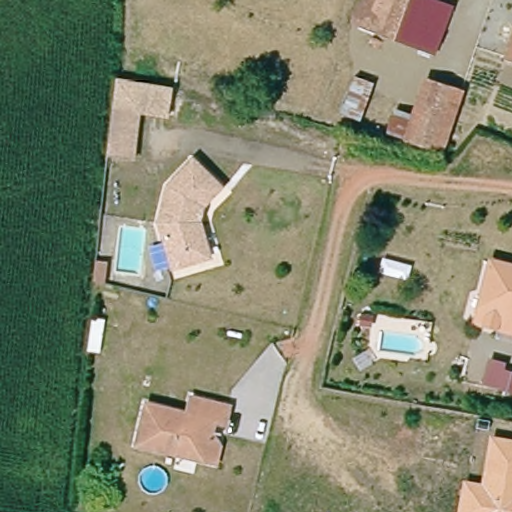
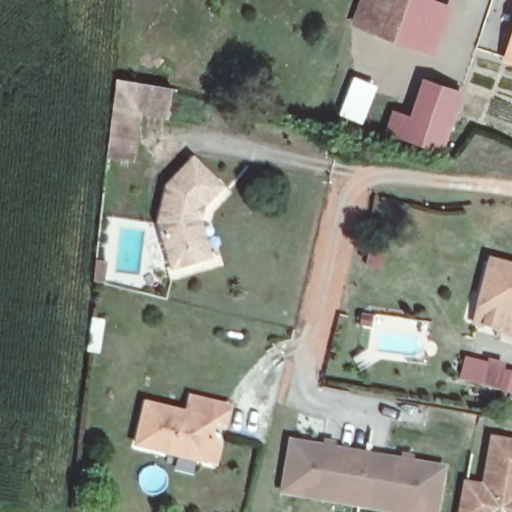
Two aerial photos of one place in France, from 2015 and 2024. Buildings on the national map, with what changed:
unchanged [(427,52),(363,25),(375,0),(418,0),(445,10),(427,52)]
unchanged [(512,50),(512,60),(509,59),(512,50)]
unchanged [(166,116),(135,111),(130,160),(103,157),(114,77),(169,90),(166,116)]
unchanged [(353,122),(335,112),(351,77),(368,86),(353,122)]
unchanged [(424,118),(433,97),(459,109),(437,160),(421,156),(392,143),(407,109),(424,118)]
unchanged [(220,185),(203,205),(200,217),(210,256),(170,269),(155,218),(164,183),(190,154),(220,185)]
unchanged [(486,264),(512,271),(512,336),(468,323),(486,264)]
unchanged [(98,285),(102,265),(113,267),(109,287),(98,285)]
unchanged [(488,363),(505,367),(504,373),(512,375),(512,390),(483,383),(488,363)]
unchanged [(211,466),(198,463),(132,445),(142,404),(180,415),(185,397),(224,409),(219,428),(204,425),(201,438),(204,439),(215,442),(211,466)]
new [(323,439),(334,441),(334,446),(400,457),(401,452),(414,454),(413,459),(446,466),(438,512),(380,512),(279,494),(289,438),(322,444),(323,439)]
unchanged [(464,485),(482,488),(491,440),(512,444),(512,512),(458,512),(460,503),(464,485)]

